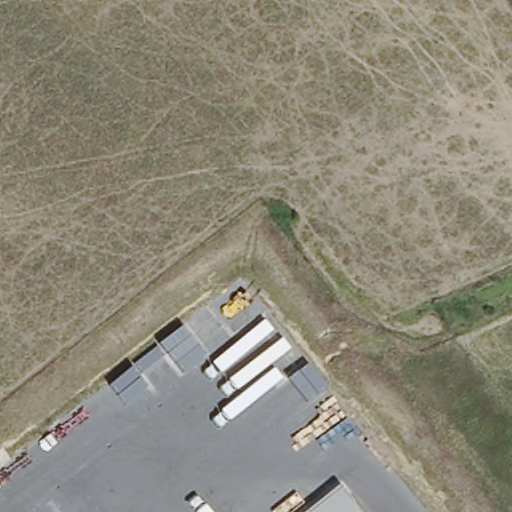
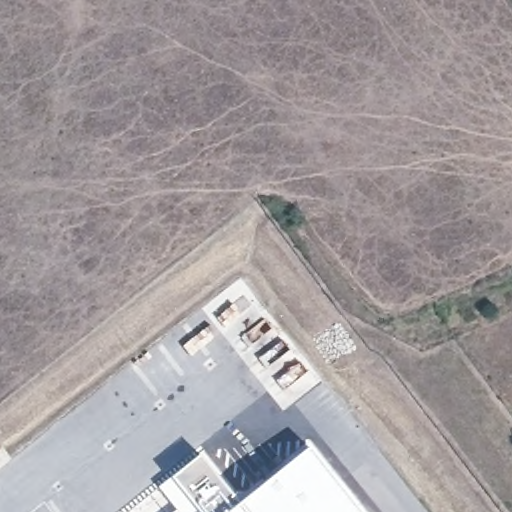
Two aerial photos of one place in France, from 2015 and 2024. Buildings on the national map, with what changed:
unchanged [(249,305),(222,327),(204,305),(232,283),(249,305)]
new [(308,447),(340,485),(306,512),(179,512),(159,487),(172,477),(200,455),(239,502),(308,447)]
unchanged [(361,512),(306,512),(340,485),(361,512)]

